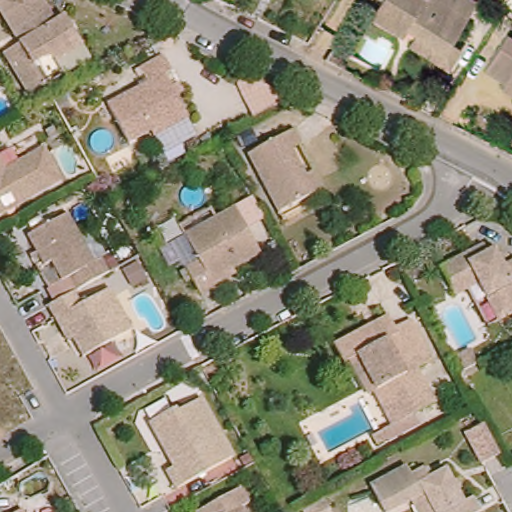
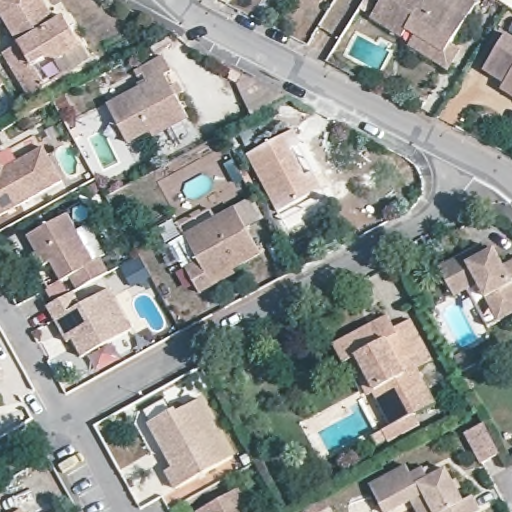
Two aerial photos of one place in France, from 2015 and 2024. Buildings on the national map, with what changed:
unchanged [(68,18),(87,49),(65,62),(50,58),(37,66),(50,88),(32,99),(6,55),(22,45),(0,9),(0,0),(45,0),(59,23),(68,18)]
unchanged [(411,54),(418,42),(408,37),(406,40),(372,18),(383,0),(422,0),(426,2),(427,0),(464,0),(478,8),(452,49),(462,55),(450,77),(411,54)]
unchanged [(508,83),(486,69),(507,34),(512,37),(512,95),(504,89),(508,83)]
unchanged [(152,132),(130,144),(109,107),(151,85),(143,70),(167,58),(175,74),(168,78),(192,121),(171,132),(156,139),(152,132)]
unchanged [(304,148),(295,154),(309,179),(318,175),(328,193),(283,219),(251,158),(296,133),(304,148)]
unchanged [(0,218),(0,159),(6,169),(45,147),(65,180),(0,218)]
unchanged [(215,286),(201,294),(187,270),(200,262),(185,236),(235,208),(261,253),(234,268),(237,274),(215,286)]
unchanged [(36,252),(42,248),(33,232),(74,209),(101,258),(108,255),(116,269),(84,287),(76,274),(68,278),(54,286),(36,252)]
unchanged [(485,300),(477,286),(465,293),(453,299),(447,289),(436,268),(468,251),(480,245),(484,253),(491,249),(499,264),(512,258),(512,318),(499,325),(495,319),(485,300)]
unchanged [(61,317),(53,303),(79,289),(87,302),(116,286),(138,327),(89,354),(79,336),(73,339),(61,317)]
unchanged [(347,358),(341,362),(330,341),(364,323),(385,312),(388,319),(394,329),(409,321),(431,364),(417,372),(435,406),(392,428),(384,411),(390,408),(380,389),(374,393),(367,396),(347,358)]
unchanged [(456,357),(470,349),(478,364),(463,371),(456,357)]
unchanged [(233,458),(176,490),(166,472),(173,468),(149,424),(175,410),(178,415),(202,401),(233,458)]
unchanged [(486,423),(502,455),(487,463),(471,432),(486,423)]
unchanged [(413,476),(424,471),(429,480),(446,471),(464,503),(472,500),(478,512),(429,512),(422,498),(394,512),(384,512),(370,487),(408,468),(413,476)]
unchanged [(242,489),(250,504),(242,508),(244,512),(200,512),(242,489)]
unchanged [(335,512),(321,512),(320,509),(331,504),(335,512)]
unchanged [(21,506),(25,512),(11,512),(21,506)]

